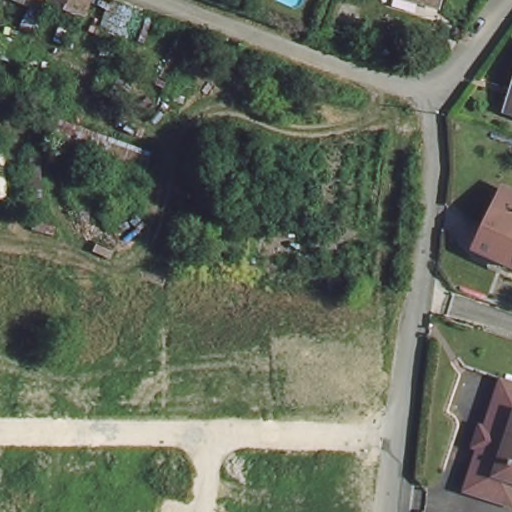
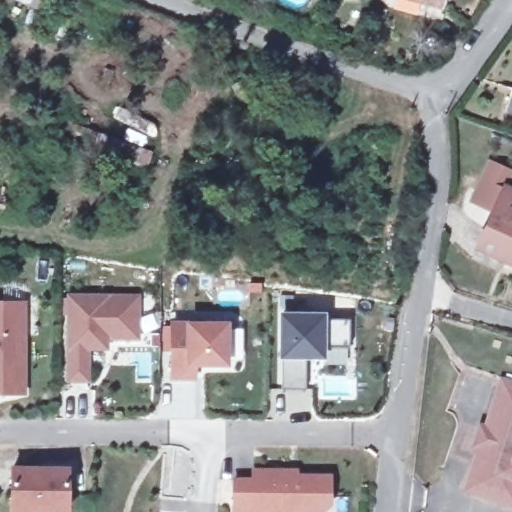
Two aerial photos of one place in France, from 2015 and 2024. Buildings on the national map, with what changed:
unchanged [(59,0),(89,0),(85,10),(59,0)]
unchanged [(431,0),(440,0),(439,2),(431,0)]
unchanged [(512,100),(512,102),(511,102),(512,100)]
unchanged [(150,152),(144,168),(74,143),(72,146),(51,138),(58,118),(150,152)]
unchanged [(512,259),(480,243),(505,188),(512,191),(512,259)]
unchanged [(74,293),(141,295),(140,334),(110,334),(109,344),(90,344),(90,376),(72,376),(74,293)]
new [(27,300),(26,391),(0,390),(0,300),(27,300)]
new [(327,311),(326,320),(350,319),(350,358),(324,359),(298,359),(302,391),(283,390),(280,357),(278,310),(327,311)]
new [(176,321),(230,322),(230,362),(197,361),(197,375),(175,375),(176,321)]
unchanged [(512,382),(512,475),(480,464),(472,462),(480,437),(485,419),(499,378),(512,382)]
unchanged [(512,500),(477,489),(465,485),(472,462),(480,464),(512,475),(512,500)]
new [(10,465),(71,465),(72,512),(12,512),(10,465)]
new [(236,480),(256,480),(256,471),(285,471),(285,476),(332,477),(331,505),(324,512),(236,512),(235,512),(236,480)]

